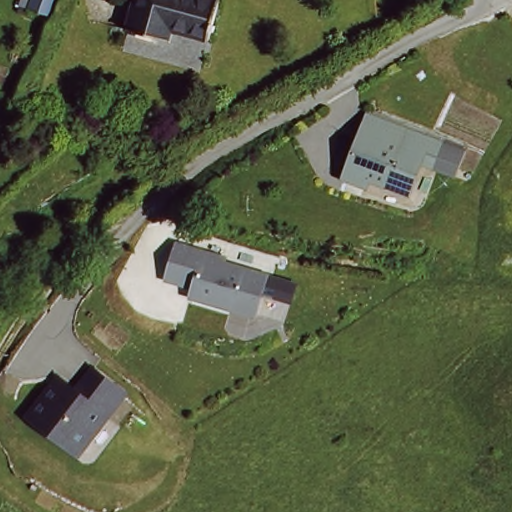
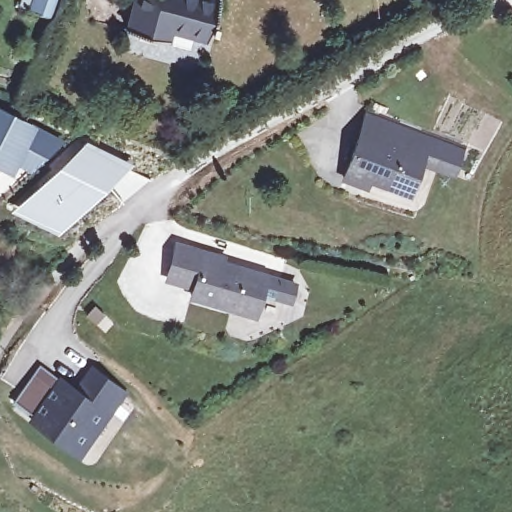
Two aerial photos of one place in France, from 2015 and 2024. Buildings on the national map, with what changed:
unchanged [(37,12),(35,12),(26,8),(29,0),(64,0),(56,20),(37,12)]
unchanged [(218,0),(207,39),(169,30),(166,41),(126,31),(134,0),(218,0)]
new [(11,165),(0,159),(0,111),(31,127),(30,128),(63,144),(36,168),(16,157),(11,165)]
unchanged [(452,177),(417,165),(404,195),(366,181),(363,189),(344,181),(358,143),(364,144),(373,122),(426,141),(462,154),(452,177)]
new [(57,168),(84,140),(131,162),(104,189),(56,230),(10,209),(57,168)]
unchanged [(184,251),(228,263),(228,266),(227,268),(271,280),(260,320),(194,301),(198,291),(169,283),(179,249),(184,251)]
unchanged [(55,390),(61,394),(65,388),(75,395),(91,371),(122,392),(125,393),(108,418),(103,414),(79,450),(34,421),(55,390)]

